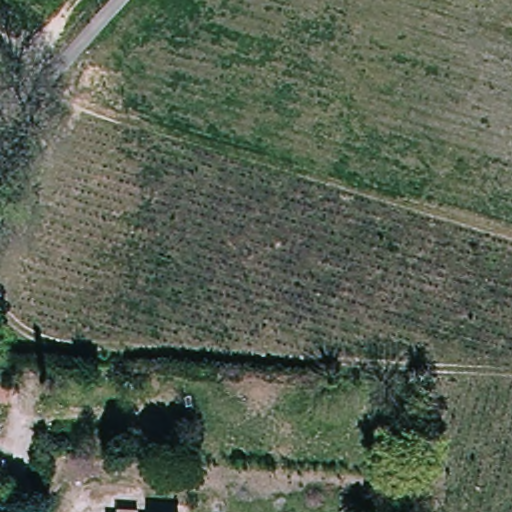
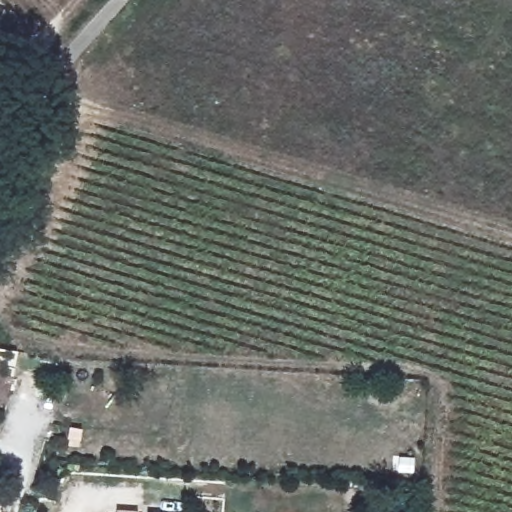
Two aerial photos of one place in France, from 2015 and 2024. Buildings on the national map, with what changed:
unchanged [(142,510),(142,512),(121,512),(121,508),(142,510)]

